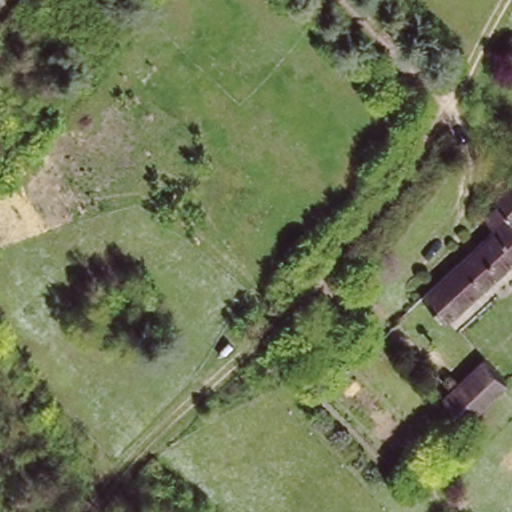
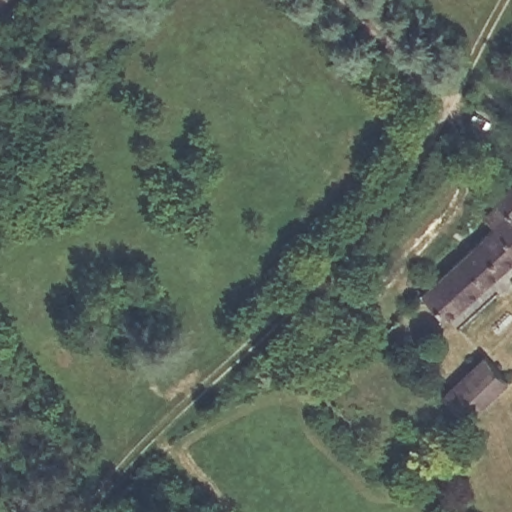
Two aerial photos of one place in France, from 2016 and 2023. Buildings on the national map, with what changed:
unchanged [(427,293),(502,221),(495,213),(506,202),(502,197),(512,188),(512,269),(455,322),(427,293)]
unchanged [(442,397),(487,355),(512,382),(512,384),(470,423),(442,397)]

